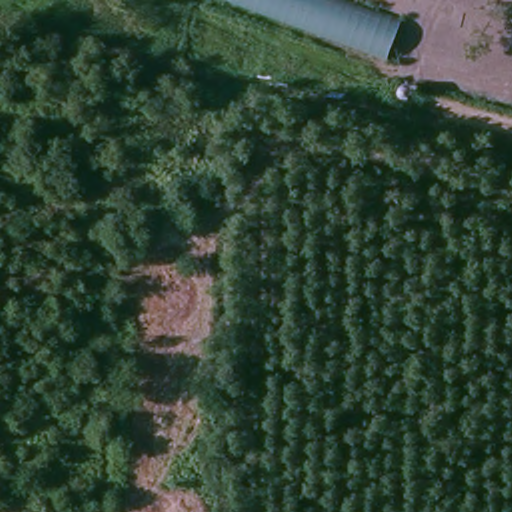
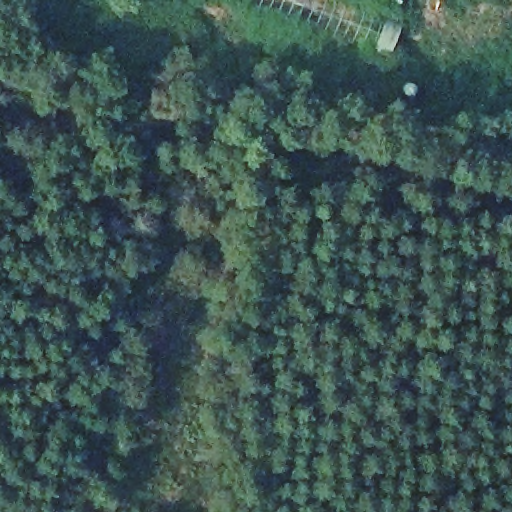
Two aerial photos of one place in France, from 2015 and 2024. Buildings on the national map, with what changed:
unchanged [(340,0),(402,23),(388,59),(225,0),(340,0)]

